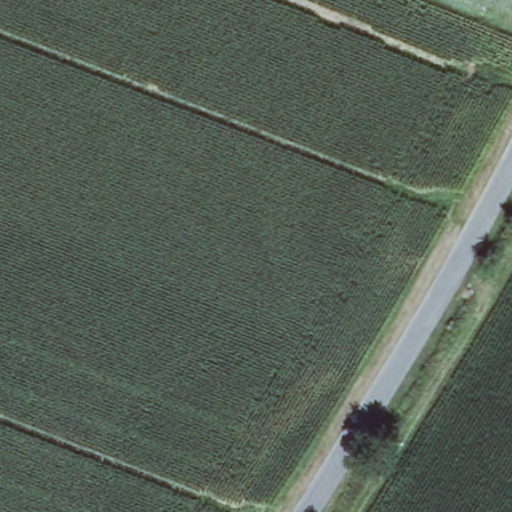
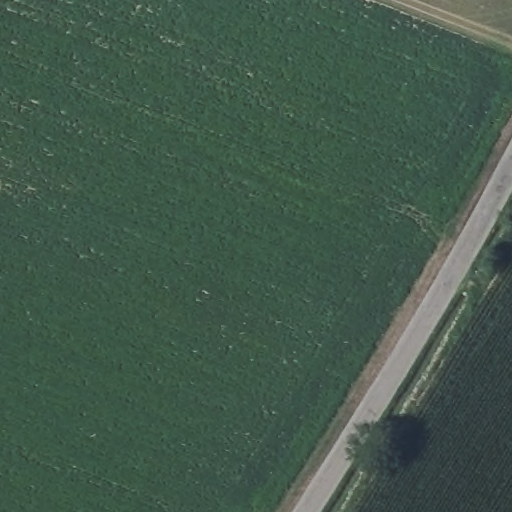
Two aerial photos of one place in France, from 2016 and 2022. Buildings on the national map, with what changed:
[]

